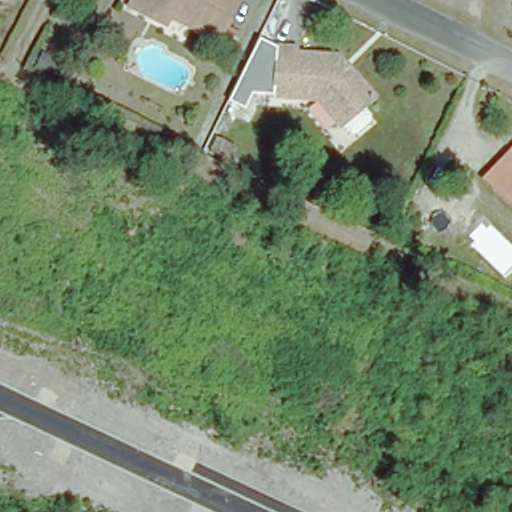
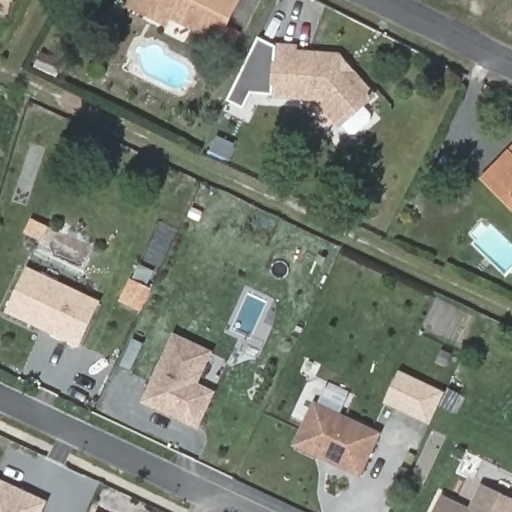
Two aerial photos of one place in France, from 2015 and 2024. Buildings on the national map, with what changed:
unchanged [(0,2),(0,0),(10,0),(10,4),(0,2)]
unchanged [(129,0),(231,0),(215,33),(170,12),(166,19),(128,1),(129,0)]
unchanged [(368,114),(355,125),(341,122),(334,113),(332,114),(311,89),(268,84),(270,36),(287,39),(289,43),(333,48),(366,86),(358,92),(368,103),(368,114)]
unchanged [(500,161),(512,149),(512,202),(485,177),(500,161)]
new [(79,348),(5,313),(26,267),(100,302),(79,348)]
new [(199,431),(141,403),(172,333),(214,352),(200,384),(216,391),(199,431)]
new [(429,426),(383,404),(398,371),(445,393),(429,426)]
new [(360,479),(292,447),(313,400),(382,433),(360,479)]
new [(0,479),(47,502),(43,512),(0,512),(0,479)]
new [(441,495),(468,508),(480,483),(512,499),(512,512),(434,512),(441,495)]

